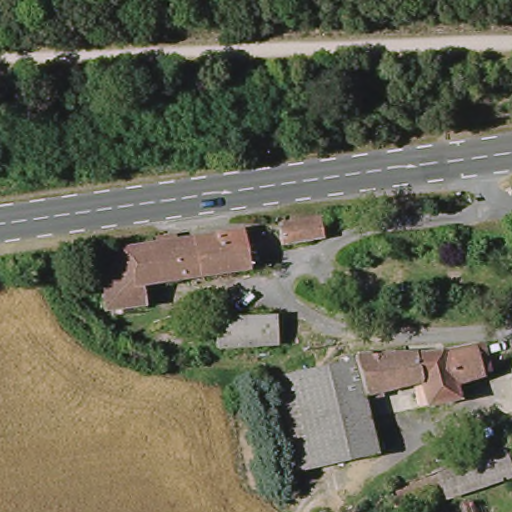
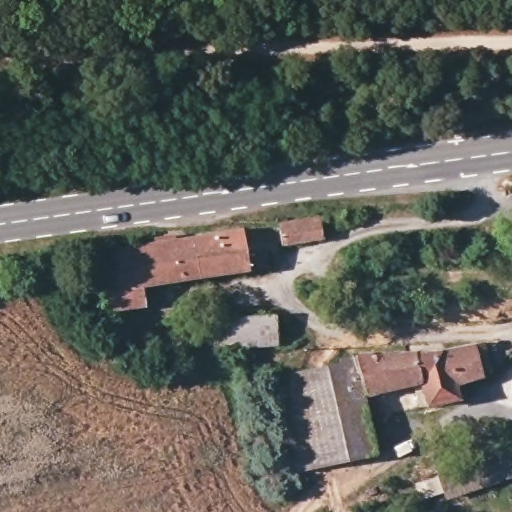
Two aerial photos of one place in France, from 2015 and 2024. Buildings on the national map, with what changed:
unchanged [(330,239),(287,246),(282,223),(325,216),(330,239)]
unchanged [(252,273),(147,290),(149,309),(107,315),(98,256),(243,233),(252,273)]
unchanged [(282,350),(215,357),(210,315),(210,307),(277,301),(282,350)]
unchanged [(362,400),(359,400),(351,358),(394,355),(427,353),(470,349),(477,378),(463,387),(464,397),(455,399),(455,404),(422,410),(416,387),(362,400)]
unchanged [(320,374),(317,366),(322,365),(351,358),(359,400),(362,400),(376,458),(340,467),(300,478),(275,386),(320,374)]
unchanged [(442,502),(437,483),(448,479),(478,470),(505,461),(512,481),(512,484),(497,490),(444,507),(442,502)]
unchanged [(389,499),(434,484),(437,483),(442,502),(419,511),(414,512),(393,512),(389,499)]

